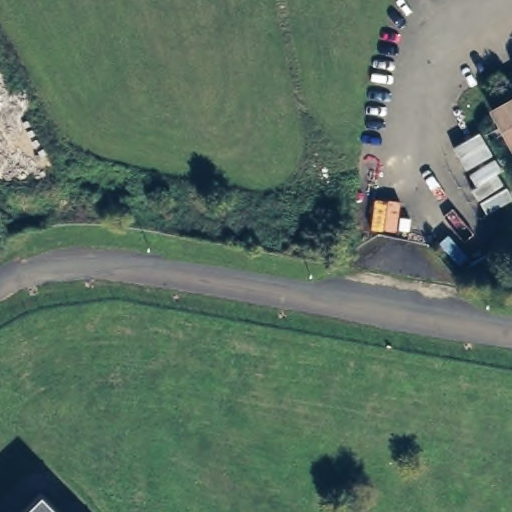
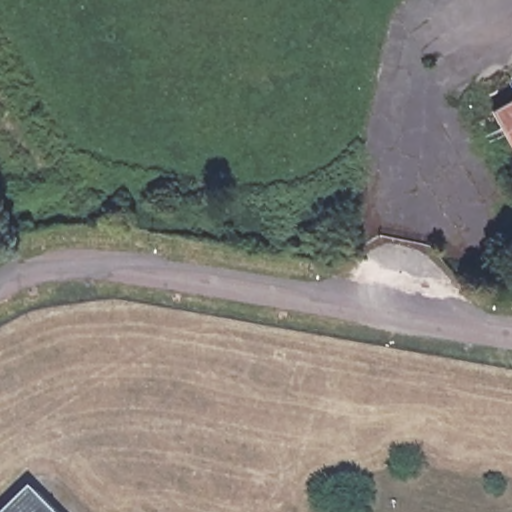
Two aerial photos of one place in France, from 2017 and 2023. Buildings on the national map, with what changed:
unchanged [(491,110),(512,99),(512,148),(491,110)]
unchanged [(59,512),(21,512),(41,493),(59,512)]

